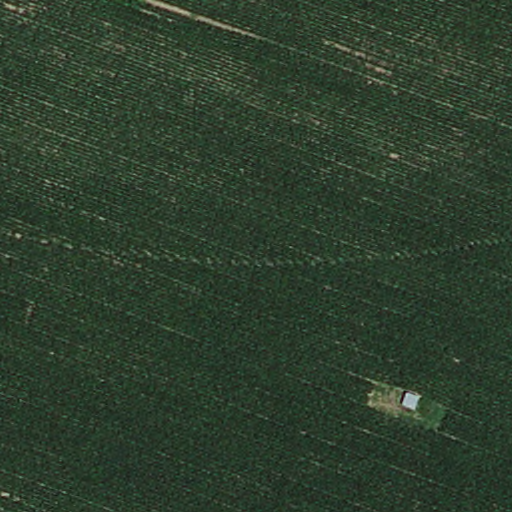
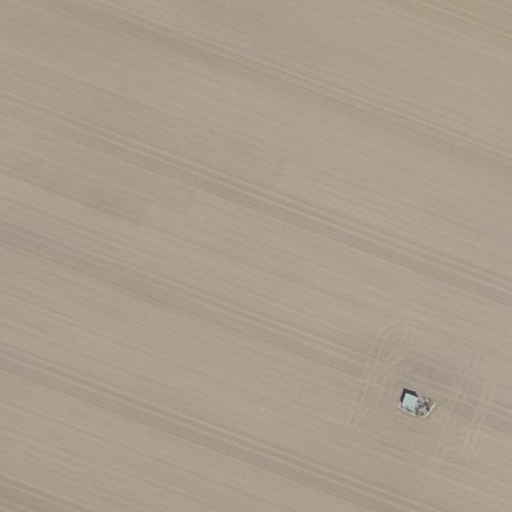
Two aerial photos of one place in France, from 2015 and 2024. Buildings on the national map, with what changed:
unchanged [(417,407),(400,400),(408,378),(425,385),(417,407)]

